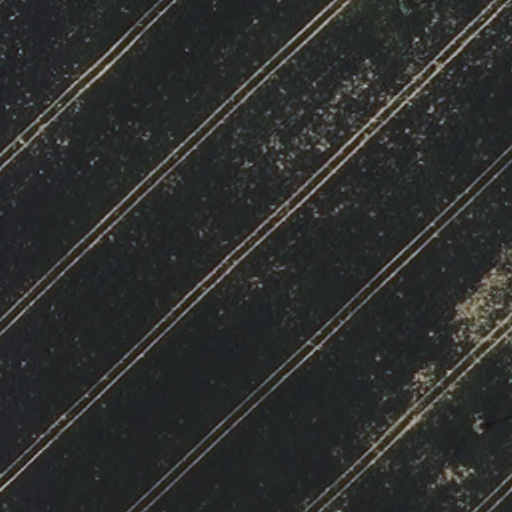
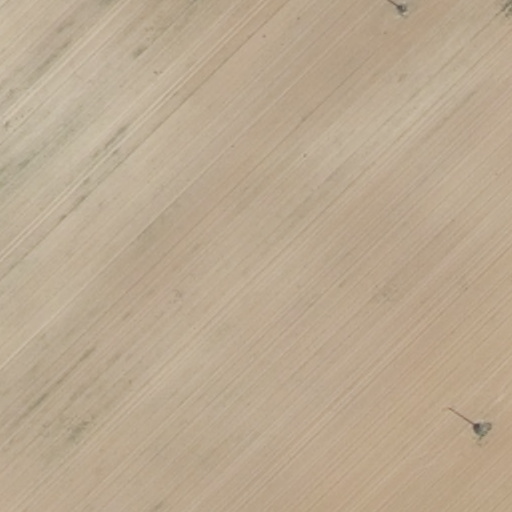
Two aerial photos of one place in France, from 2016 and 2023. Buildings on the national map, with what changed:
[]

